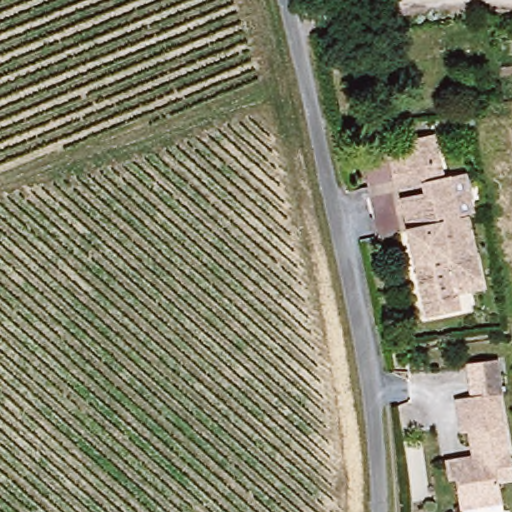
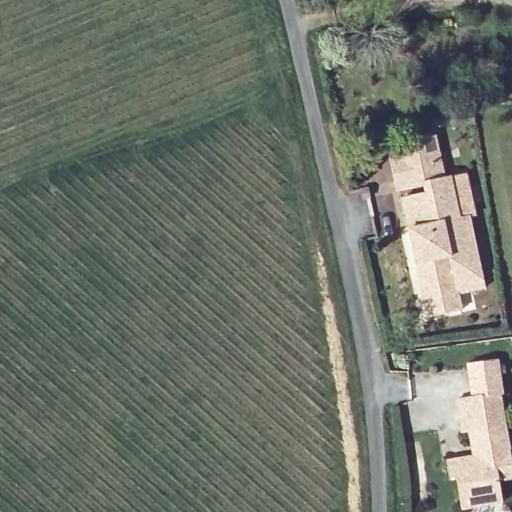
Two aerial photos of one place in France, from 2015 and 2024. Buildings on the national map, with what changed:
unchanged [(462,310),(429,318),(403,201),(427,195),(425,184),(421,184),(400,189),(393,158),(414,153),(411,140),(436,136),(446,176),(451,175),(467,172),(475,213),(471,214),(486,286),(459,291),(462,310)]
unchanged [(464,512),(463,505),(459,482),(453,483),(450,464),(477,460),(472,435),(465,437),(459,403),(476,400),(470,367),(497,362),(503,396),(501,398),(505,424),(508,429),(512,456),(512,481),(500,484),(503,498),(504,505),(464,512)]

